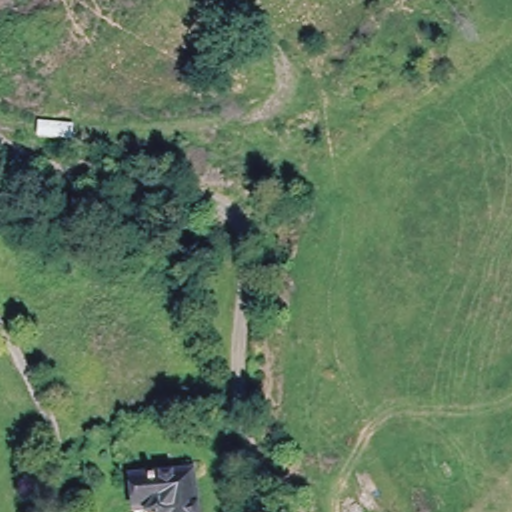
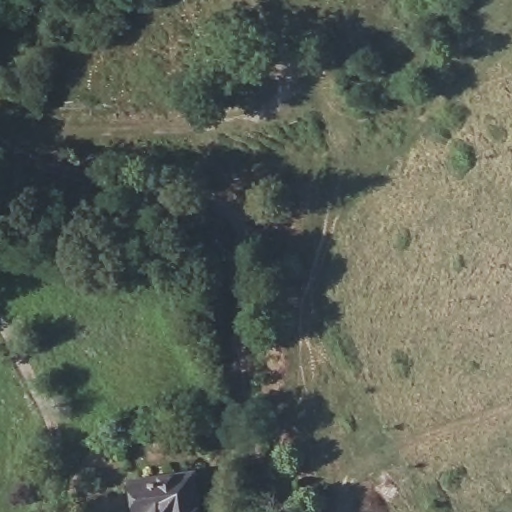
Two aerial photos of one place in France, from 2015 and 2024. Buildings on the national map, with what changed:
unchanged [(134,509),(131,479),(191,473),(196,512),(142,512),(134,511),(134,509)]

